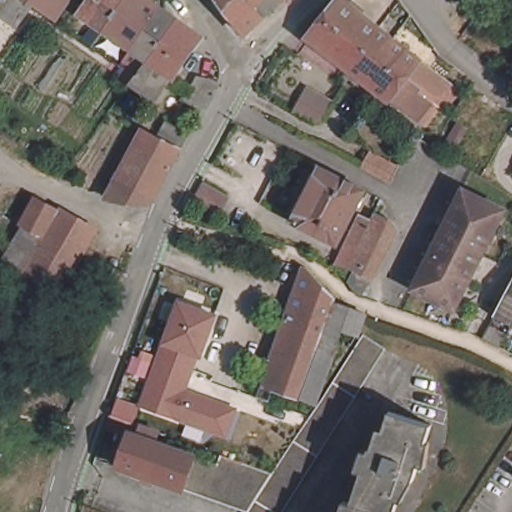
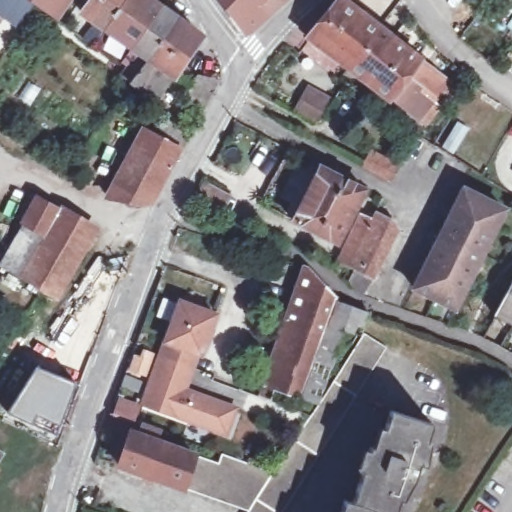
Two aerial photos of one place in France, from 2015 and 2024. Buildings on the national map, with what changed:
unchanged [(8,0),(42,0),(31,17),(8,0)]
unchanged [(68,11),(53,0),(77,0),(68,11)]
unchanged [(118,27),(107,44),(97,37),(108,21),(95,12),(105,0),(138,0),(118,27)]
unchanged [(172,5),(143,45),(118,27),(138,0),(165,0),(172,5)]
unchanged [(248,36),(222,0),(288,0),(248,36)]
unchanged [(414,64),(437,81),(442,85),(427,105),(416,120),(387,100),(385,102),(347,73),(295,35),(314,17),(333,0),(353,0),(344,9),(377,32),(391,44),(415,62),(414,64)]
unchanged [(188,17),(179,29),(160,56),(150,69),(135,56),(143,45),(172,5),(188,17)]
unchanged [(179,29),(188,17),(211,34),(166,96),(142,80),(147,74),(150,69),(160,56),(179,29)]
unchanged [(192,128),(175,117),(193,85),(212,95),(192,128)]
unchanged [(302,126),(286,117),(300,94),(320,105),(309,124),(302,126)]
unchanged [(138,143),(148,147),(152,140),(143,135),(147,127),(182,147),(172,164),(140,217),(103,210),(137,145),(138,143)]
unchanged [(375,157),(402,171),(395,187),(367,172),(375,157)]
unchanged [(343,247),(298,225),(326,170),(370,194),(343,247)]
unchanged [(12,232),(0,225),(0,221),(23,187),(102,239),(78,275),(45,254),(12,232)]
unchanged [(225,216),(200,202),(207,189),(233,202),(225,216)]
unchanged [(420,291),(468,194),(510,214),(483,270),(462,311),(420,291)]
unchanged [(343,272),(345,267),(369,220),(377,224),(380,216),(397,226),(401,235),(370,305),(364,303),(355,288),(358,279),(355,278),(353,277),(343,272)]
unchanged [(32,276),(0,256),(0,249),(12,232),(45,254),(32,276)]
unchanged [(78,275),(65,297),(32,276),(45,254),(78,275)]
unchanged [(307,404),(273,395),(269,405),(259,402),(305,275),(307,275),(345,310),(357,315),(372,320),(358,344),(348,339),(342,357),(322,408),(307,404)]
unchanged [(499,319),(512,293),(512,325),(499,319)]
unchanged [(220,315),(203,357),(188,393),(238,410),(230,438),(140,405),(162,343),(177,299),(220,315)]
unchanged [(286,465),(287,465),(310,430),(315,421),(369,341),(392,356),(291,512),(256,512),(276,481),(286,465)]
new [(36,365),(75,382),(61,424),(53,438),(7,412),(36,365)]
unchanged [(441,424),(435,443),(441,445),(435,465),(428,463),(422,481),(410,501),(407,500),(403,512),(349,512),(354,498),(360,500),(380,445),(387,447),(400,410),(441,424)]
unchanged [(268,487),(254,512),(227,512),(122,473),(120,472),(116,471),(131,429),(142,433),(160,440),(157,447),(268,487)]

